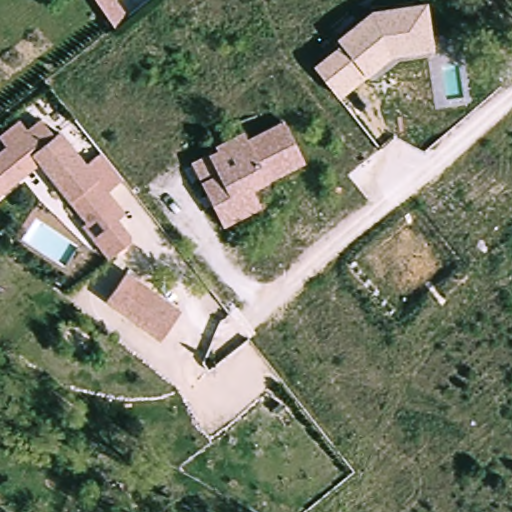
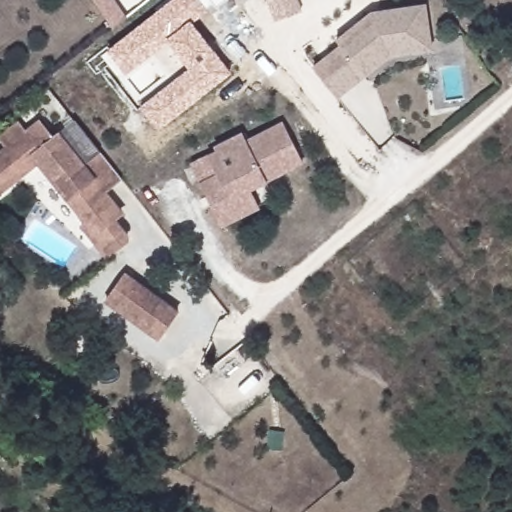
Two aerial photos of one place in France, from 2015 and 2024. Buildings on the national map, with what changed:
unchanged [(112,27),(94,0),(113,0),(125,18),(112,27)]
new [(140,105),(188,67),(167,40),(126,75),(106,50),(171,0),(227,0),(217,8),(212,2),(206,6),(208,9),(192,21),(212,49),(214,48),(232,73),(159,130),(140,105)]
unchanged [(340,98),(313,66),(338,43),(335,39),(370,9),(427,2),(433,49),(390,55),(367,74),(340,98)]
unchanged [(125,234),(126,235),(127,235),(127,237),(127,238),(127,239),(126,240),(125,240),(125,241),(106,256),(82,224),(85,221),(38,161),(0,192),(0,151),(7,146),(0,137),(0,136),(18,121),(27,131),(40,120),(52,136),(58,131),(84,164),(100,151),(122,179),(105,192),(113,202),(121,211),(112,218),(125,234)]
unchanged [(241,218),(223,226),(214,208),(208,195),(193,164),(218,151),(216,147),(243,134),(247,142),(285,124),(305,164),(251,190),(260,208),(241,218)]
unchanged [(159,339),(102,300),(122,273),(178,310),(159,339)]

